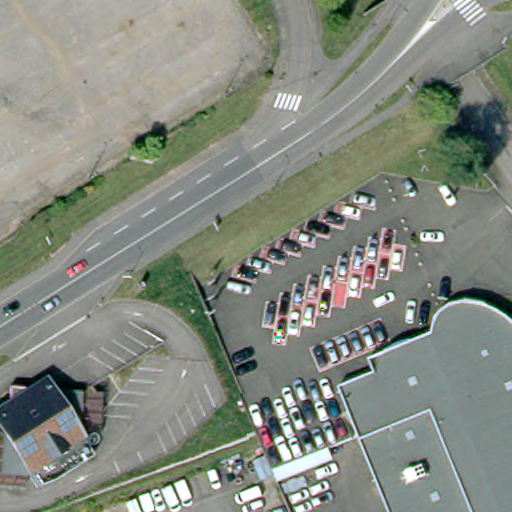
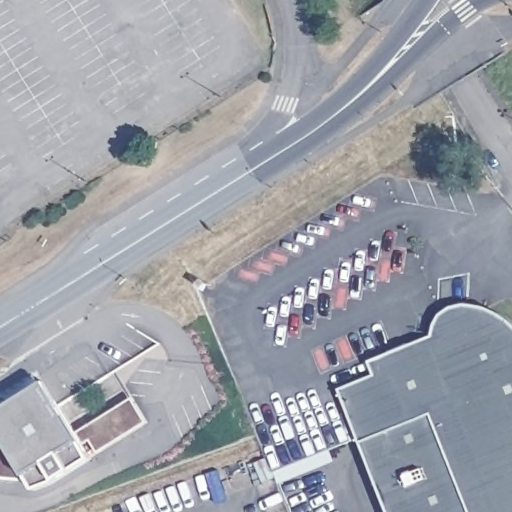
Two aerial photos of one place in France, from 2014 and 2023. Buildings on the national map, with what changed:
unchanged [(359,435),(339,386),(376,371),(371,357),(432,333),(436,325),(440,317),(447,308),(457,303),(472,300),(487,302),(512,316),(512,512),(390,512),(359,435)]
unchanged [(27,475),(0,432),(0,409),(47,381),(84,440),(27,475)]

